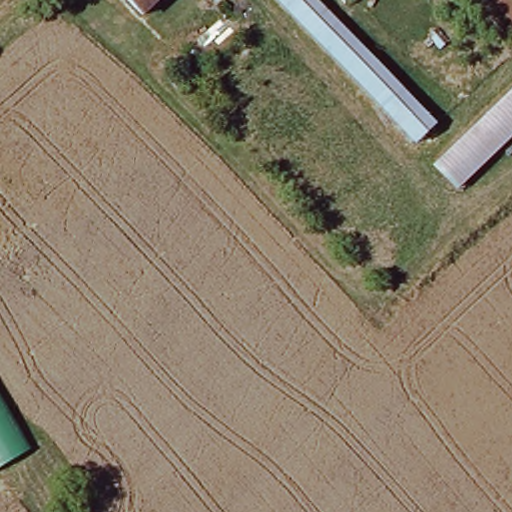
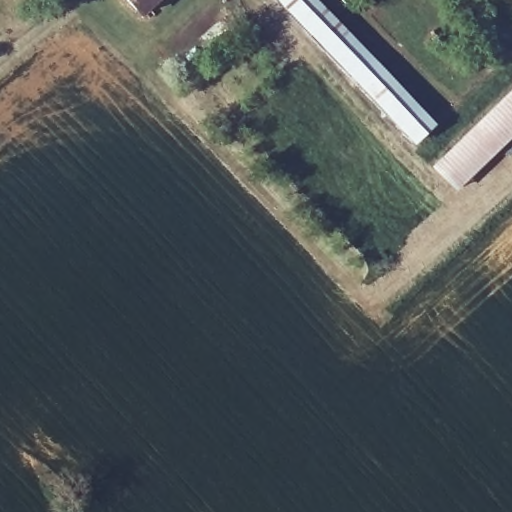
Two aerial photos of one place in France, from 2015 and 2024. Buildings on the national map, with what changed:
unchanged [(127,0),(160,0),(142,16),(127,0)]
unchanged [(269,0),(305,0),(431,131),(410,151),(269,0)]
unchanged [(458,193),(437,169),(512,97),(512,142),(458,193)]
demolished [(0,472),(0,399),(30,453),(0,472)]

